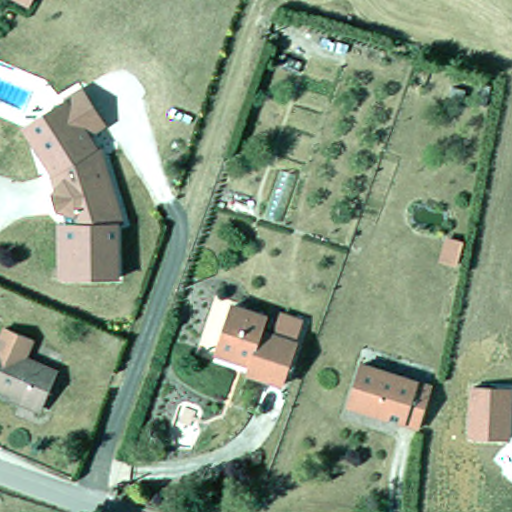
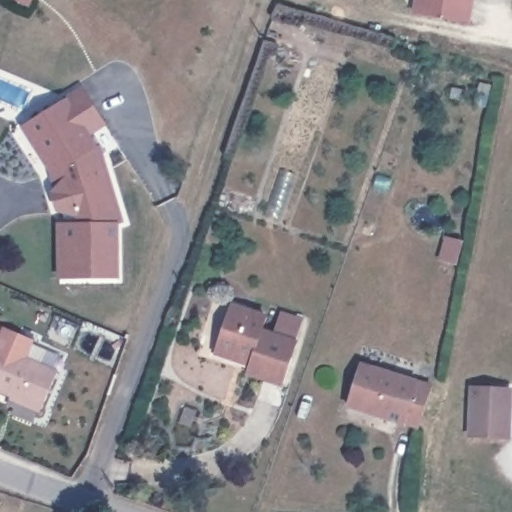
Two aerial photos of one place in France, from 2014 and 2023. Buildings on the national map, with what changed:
unchanged [(27,5),(17,0),(30,0),(27,5)]
new [(415,0),(474,0),(471,23),(412,13),(415,0)]
unchanged [(77,86),(105,128),(90,136),(101,148),(121,223),(121,279),(55,277),(57,219),(52,182),(20,128),(77,86)]
unchanged [(444,233),(469,241),(461,268),(436,261),(444,233)]
unchanged [(216,330),(229,297),(264,310),(260,321),(295,334),(281,372),(246,361),(249,353),(212,341),(216,330)]
unchanged [(37,341),(31,361),(46,367),(65,375),(49,414),(0,396),(0,345),(7,330),(37,341)]
unchanged [(415,418),(345,395),(359,356),(428,380),(415,418)]
unchanged [(512,388),(512,397),(510,440),(466,439),(469,385),(512,388)]

